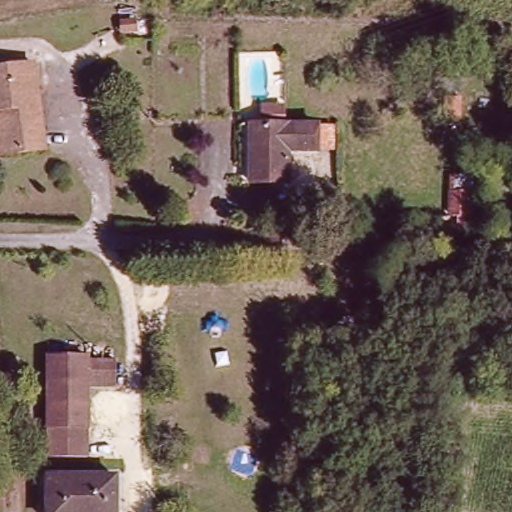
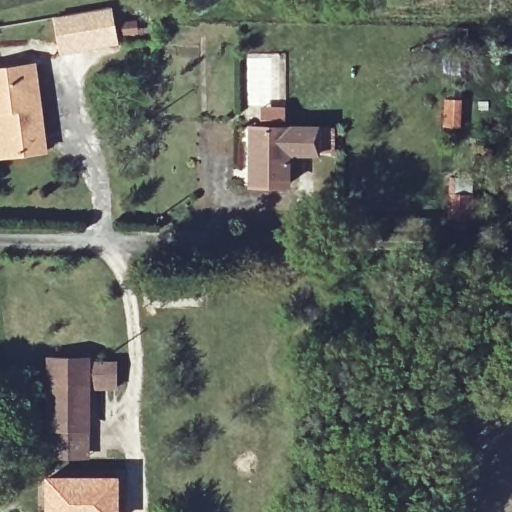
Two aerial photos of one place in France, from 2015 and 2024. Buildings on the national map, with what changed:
new [(53,17),(111,7),(118,44),(60,54),(53,17)]
unchanged [(47,157),(0,163),(0,72),(34,67),(47,157)]
unchanged [(317,131),(315,160),(287,159),(287,190),(248,189),(249,125),(317,131)]
unchanged [(450,203),(471,204),(465,238),(446,235),(450,203)]
unchanged [(425,233),(425,254),(383,252),(384,232),(425,233)]
unchanged [(45,462),(48,392),(48,360),(91,361),(91,365),(117,365),(117,394),(89,395),(90,407),(86,465),(45,462)]
unchanged [(113,482),(111,512),(48,512),(50,479),(113,482)]

